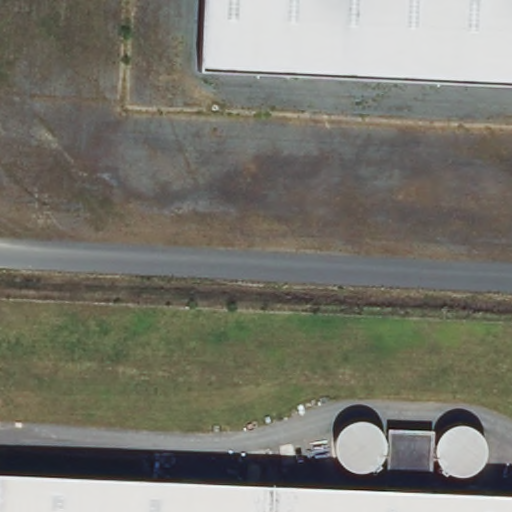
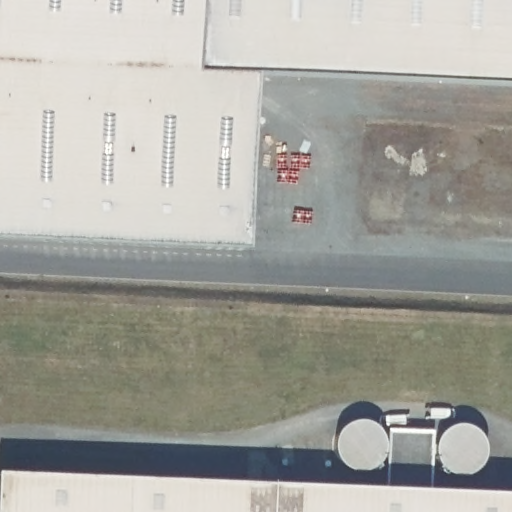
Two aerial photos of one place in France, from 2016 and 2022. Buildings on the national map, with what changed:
new [(199,73),(256,75),(248,249),(0,236),(0,0),(202,0),(199,73)]
unchanged [(199,73),(202,0),(512,0),(512,87),(199,73)]
unchanged [(512,494),(512,512),(0,512),(0,473),(388,489),(391,429),(436,431),(433,491),(512,494)]

